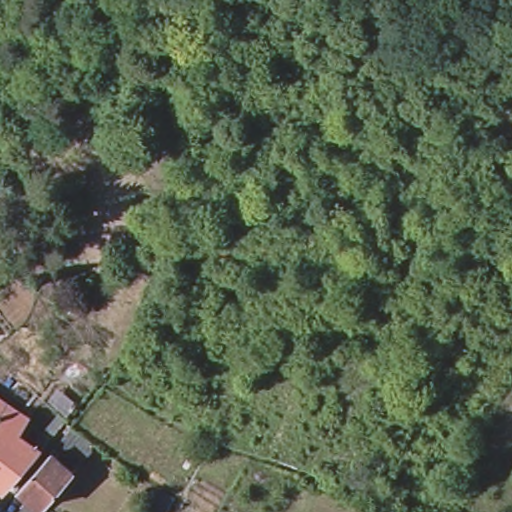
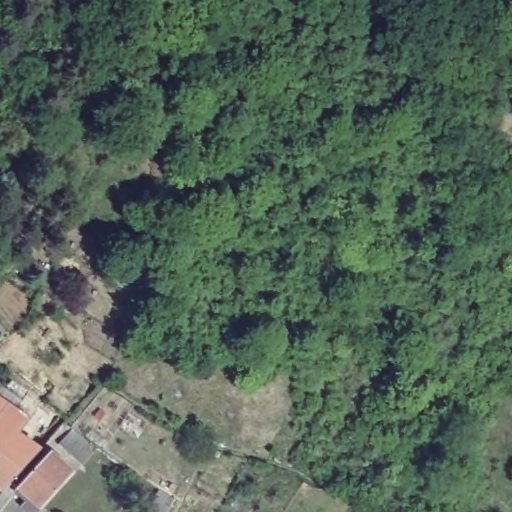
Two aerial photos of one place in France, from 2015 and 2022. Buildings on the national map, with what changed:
unchanged [(0,367),(0,354),(1,352),(33,378),(27,388),(0,367)]
unchanged [(11,409),(31,388),(64,415),(43,438),(11,409)]
unchanged [(3,401),(11,408),(0,424),(34,448),(0,486),(0,404),(3,401)]
unchanged [(36,506),(13,484),(44,449),(69,470),(36,506)]

